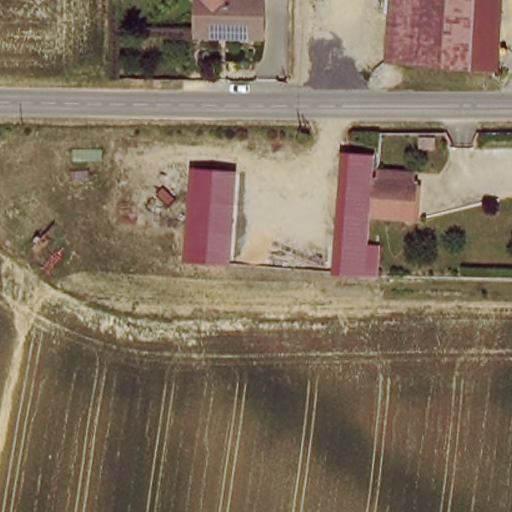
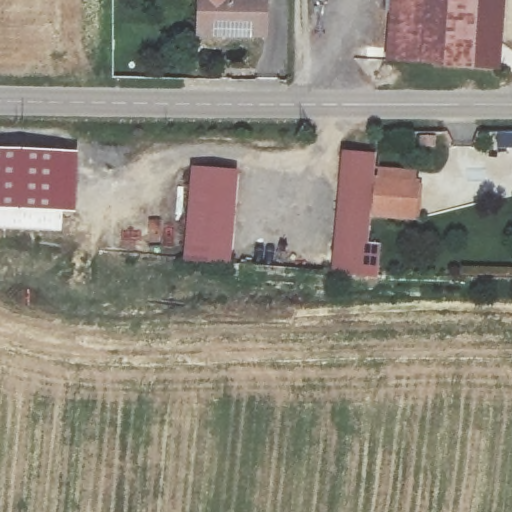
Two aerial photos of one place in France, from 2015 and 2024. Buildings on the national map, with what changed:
unchanged [(197,33),(200,0),(265,0),(263,35),(197,33)]
unchanged [(388,59),(393,0),(507,0),(500,69),(388,59)]
new [(80,151),(77,214),(0,210),(0,150),(80,151)]
unchanged [(339,277),(342,247),(350,158),(380,161),(372,249),(369,279),(339,277)]
unchanged [(184,261),(191,169),(238,174),(230,265),(184,261)]
unchanged [(423,189),(420,224),(380,220),(383,185),(423,189)]

